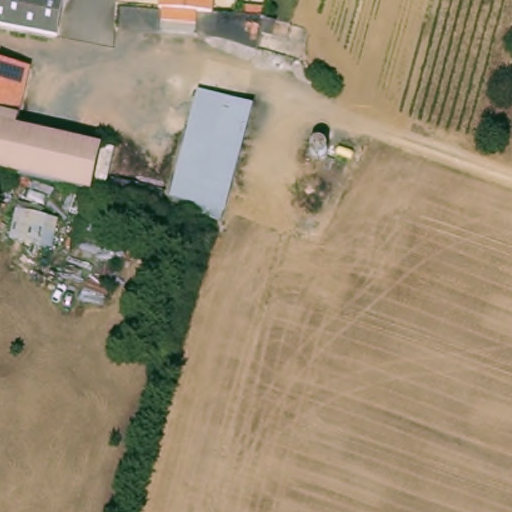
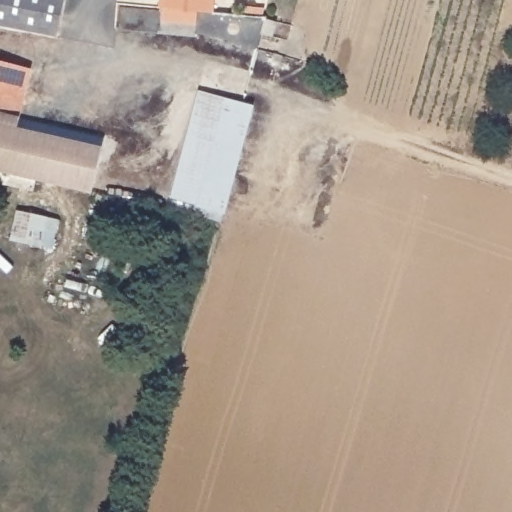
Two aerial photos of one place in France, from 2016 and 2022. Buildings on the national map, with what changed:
unchanged [(1,25),(0,24),(0,0),(64,0),(58,36),(1,25)]
unchanged [(202,8),(201,17),(164,15),(165,5),(160,4),(160,0),(217,0),(216,9),(202,8)]
unchanged [(34,64),(23,114),(0,107),(0,54),(34,64)]
unchanged [(256,105),(227,218),(169,202),(198,92),(256,105)]
unchanged [(18,169),(0,163),(0,116),(102,150),(90,185),(18,169)]

